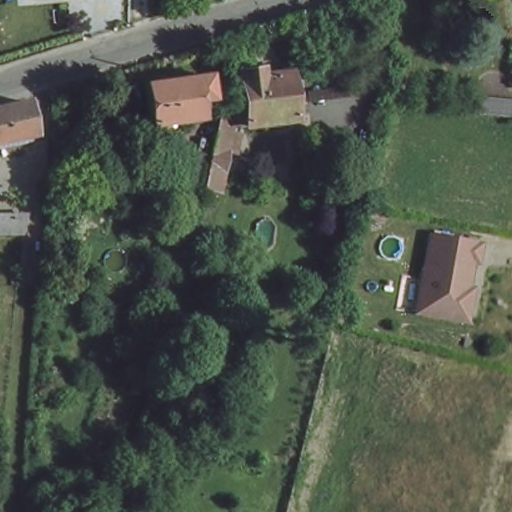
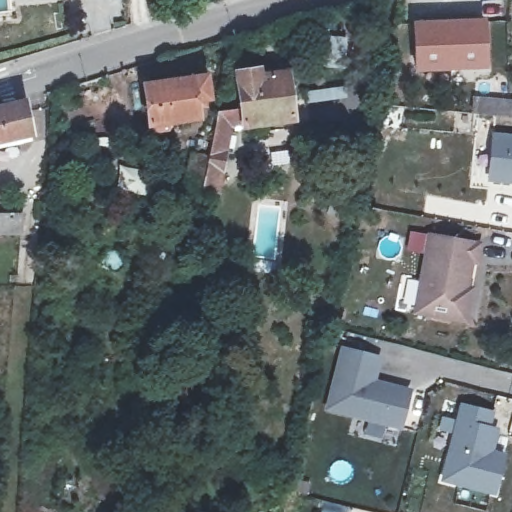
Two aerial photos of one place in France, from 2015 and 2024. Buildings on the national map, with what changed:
new [(484,18),(487,67),(414,73),(411,21),(484,18)]
new [(321,36),(347,36),(346,67),(319,65),(321,36)]
unchanged [(238,114),(237,72),(259,69),(259,77),(286,72),(294,121),(233,129),(211,132),(214,119),(238,114)]
unchanged [(199,80),(200,104),(189,106),(190,124),(163,128),(163,135),(143,138),(139,91),(199,80)]
new [(344,85),(346,98),(308,104),(306,91),(344,85)]
unchanged [(501,112),(504,95),(512,96),(512,113),(501,112)]
unchanged [(0,140),(0,108),(24,102),(29,135),(0,140)]
unchanged [(191,151),(206,155),(211,132),(233,129),(223,192),(199,187),(198,194),(181,187),(191,151)]
new [(486,182),(490,132),(512,134),(512,184),(486,182)]
unchanged [(20,232),(0,231),(0,212),(21,212),(20,232)]
unchanged [(464,292),(459,315),(410,306),(426,229),(474,239),(472,256),(467,255),(461,282),(466,283),(464,292)]
new [(398,426),(326,407),(341,348),(376,357),(370,381),(407,391),(398,426)]
new [(459,405),(489,412),(486,427),(494,428),(489,451),(502,455),(494,492),(443,480),(459,405)]

